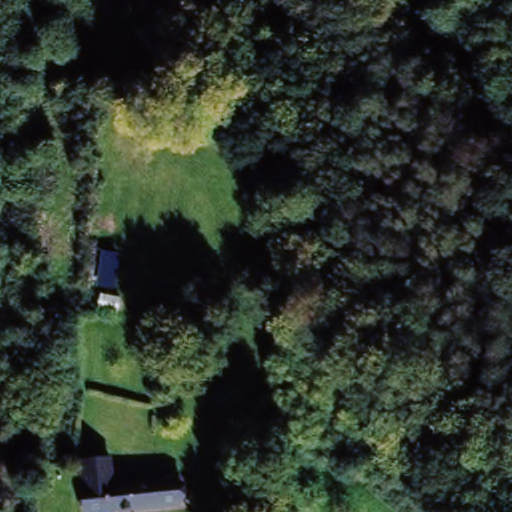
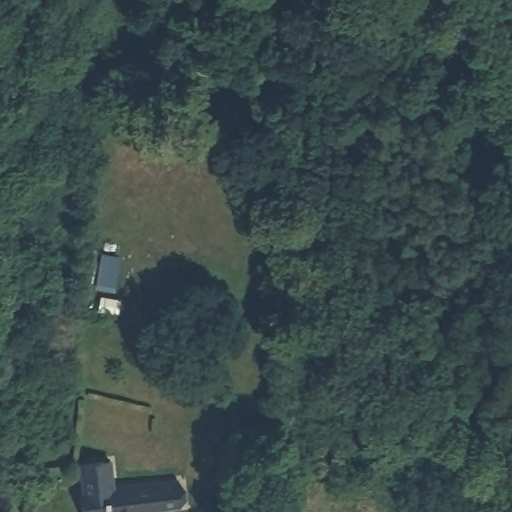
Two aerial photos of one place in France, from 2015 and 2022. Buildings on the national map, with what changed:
unchanged [(110,468),(112,492),(175,486),(177,511),(167,512),(84,512),(82,470),(110,468)]

